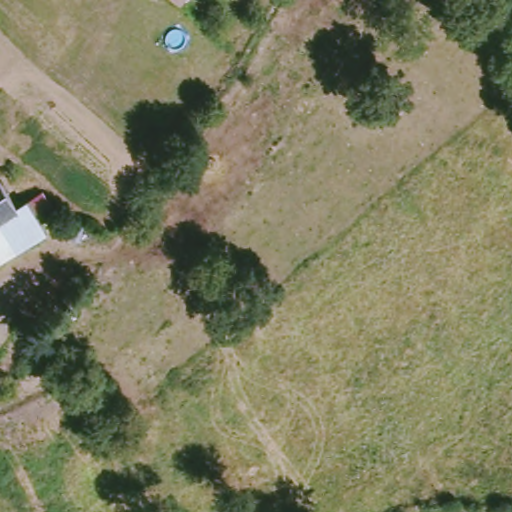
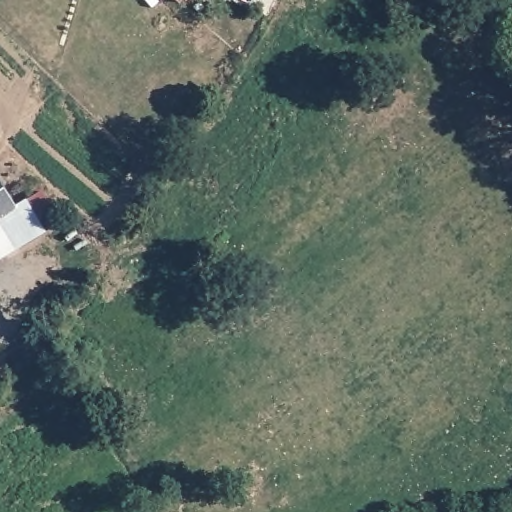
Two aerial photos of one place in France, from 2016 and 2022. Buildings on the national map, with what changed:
unchanged [(174,0),(182,0),(178,4),(174,0)]
unchanged [(0,255),(0,188),(12,207),(21,201),(38,191),(50,211),(34,221),(39,230),(0,255)]

